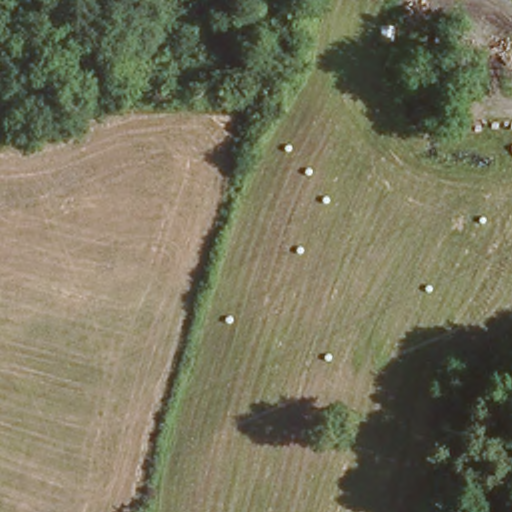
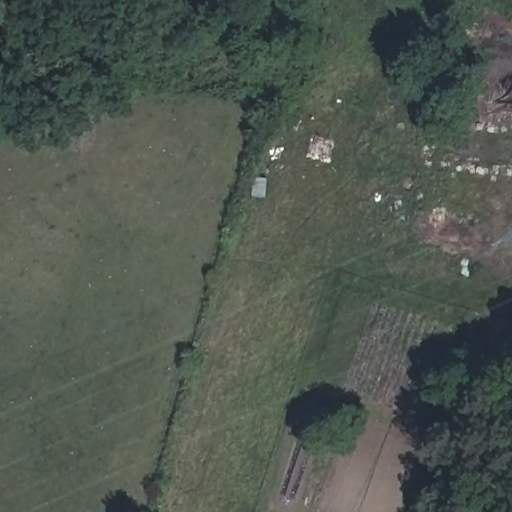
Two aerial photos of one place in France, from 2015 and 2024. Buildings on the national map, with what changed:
[]

